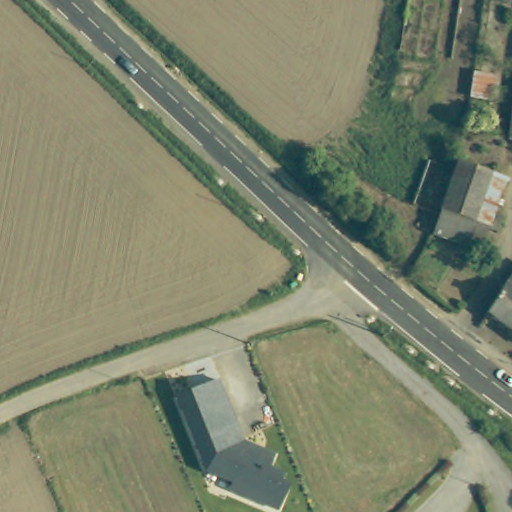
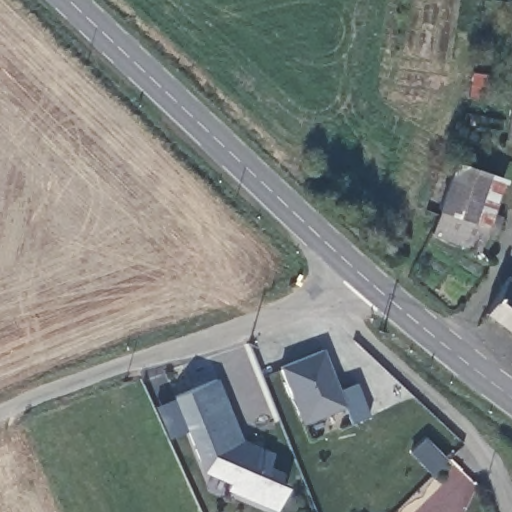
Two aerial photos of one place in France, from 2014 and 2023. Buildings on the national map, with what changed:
unchanged [(507,143),(512,108),(512,143),(507,143)]
unchanged [(480,257),(434,242),(462,163),(509,177),(480,257)]
unchanged [(482,318),(502,288),(512,274),(512,338),(482,318)]
new [(324,352),(340,391),(358,384),(371,417),(353,425),(346,408),(306,425),(294,394),(292,395),(281,369),(324,352)]
unchanged [(227,490),(230,484),(204,473),(172,396),(217,381),(243,441),(273,452),(267,468),(282,474),(279,482),(288,486),(275,512),(227,490)]

